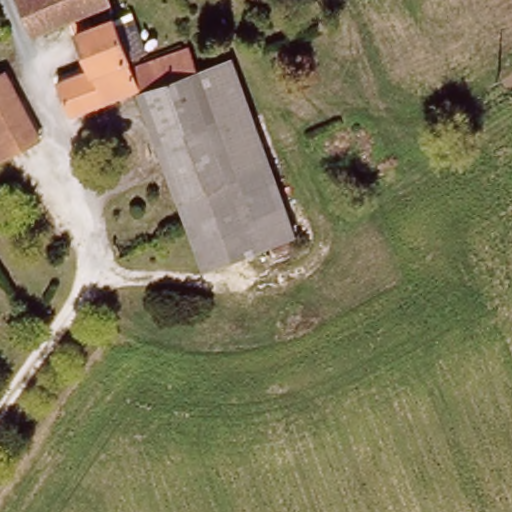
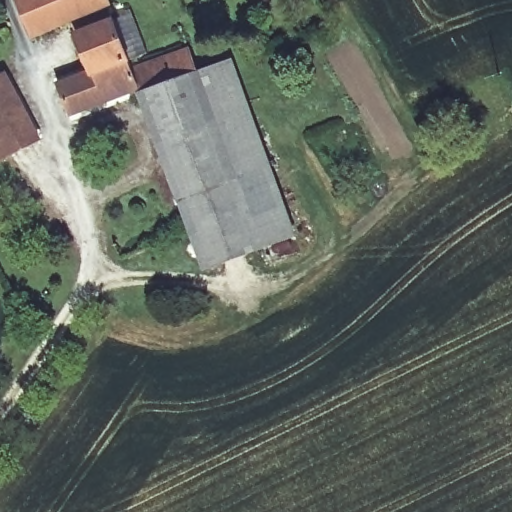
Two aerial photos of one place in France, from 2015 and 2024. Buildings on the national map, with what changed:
unchanged [(90,70),(76,35),(71,20),(29,36),(24,24),(12,0),(112,0),(112,1),(107,4),(132,69),(139,90),(68,114),(56,83),(90,70)]
unchanged [(139,90),(132,69),(156,60),(190,49),(198,71),(166,82),(139,90)]
unchanged [(237,177),(198,71),(217,65),(235,49),(275,160),(237,177)]
unchanged [(139,90),(166,82),(198,71),(237,177),(179,197),(139,90)]
unchanged [(0,158),(0,74),(4,72),(37,140),(10,152),(0,158)]
unchanged [(190,225),(179,197),(237,177),(275,160),(292,210),(253,225),(199,246),(190,225)]
unchanged [(253,225),(292,210),(300,230),(207,267),(199,246),(253,225)]

